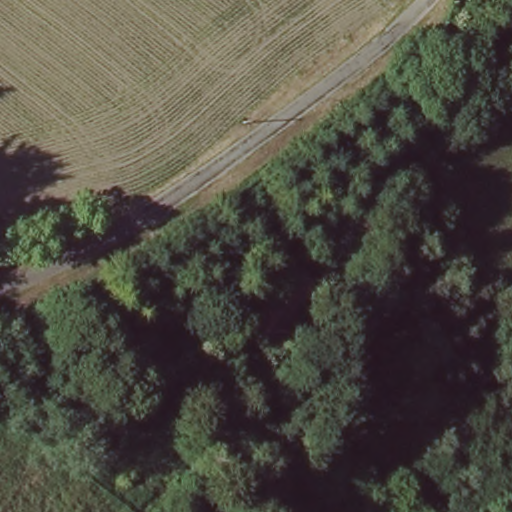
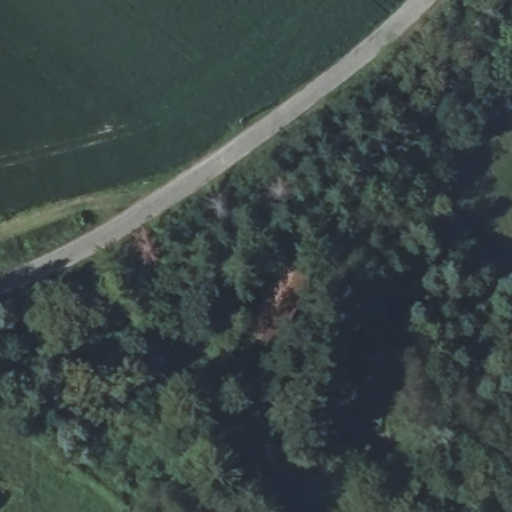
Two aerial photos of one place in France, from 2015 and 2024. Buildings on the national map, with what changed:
unchanged [(238,347),(274,283),(300,293),(261,360),(238,347)]

